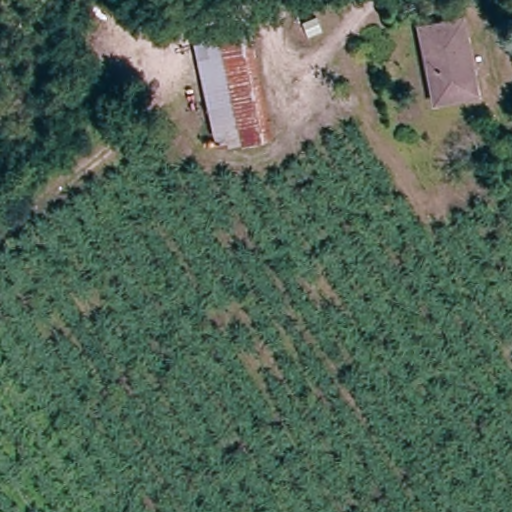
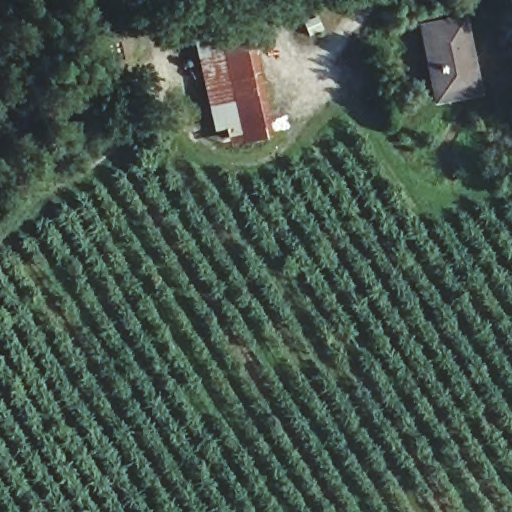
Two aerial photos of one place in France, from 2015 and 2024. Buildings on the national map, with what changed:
unchanged [(240,126),(209,126),(205,104),(193,25),(223,21),(240,123),(240,126)]
unchanged [(477,101),(436,106),(422,31),(460,25),(477,101)]

